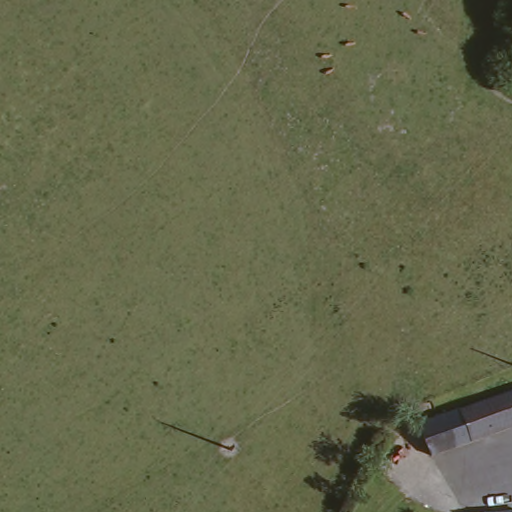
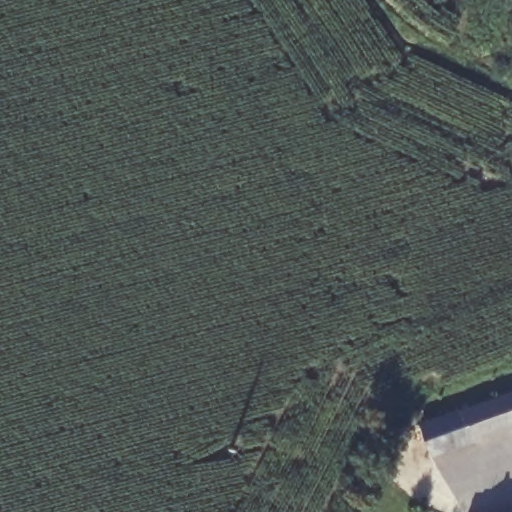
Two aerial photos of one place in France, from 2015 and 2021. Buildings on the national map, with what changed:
unchanged [(441,452),(431,426),(512,395),(512,425),(441,452)]
unchanged [(506,512),(512,511),(512,512),(506,512)]

